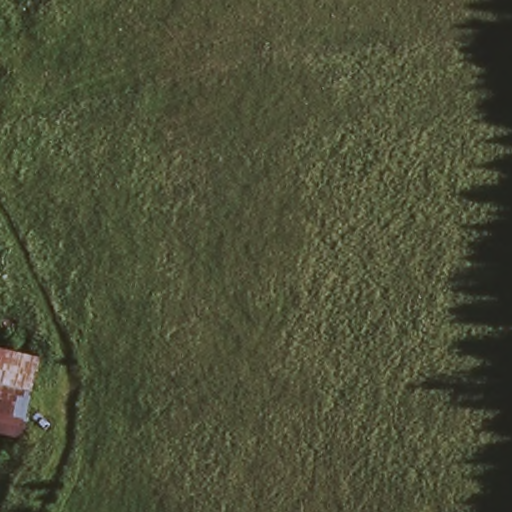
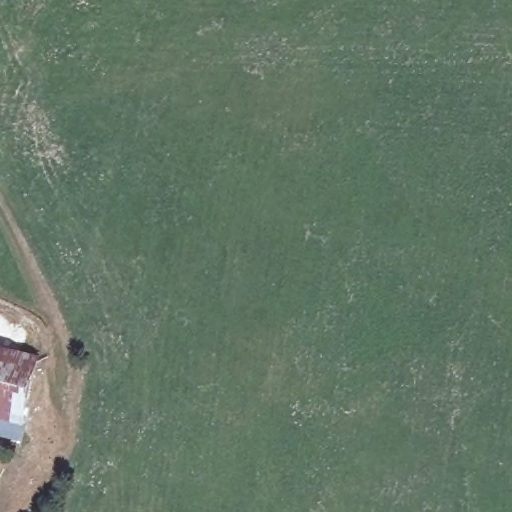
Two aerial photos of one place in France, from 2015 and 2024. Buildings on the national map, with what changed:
unchanged [(44,358),(30,438),(0,436),(0,348),(44,358)]

